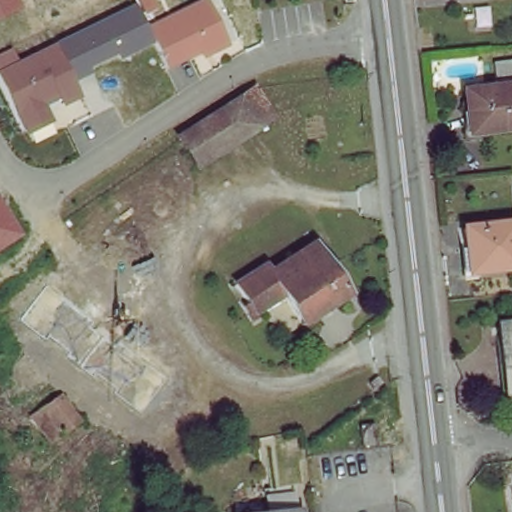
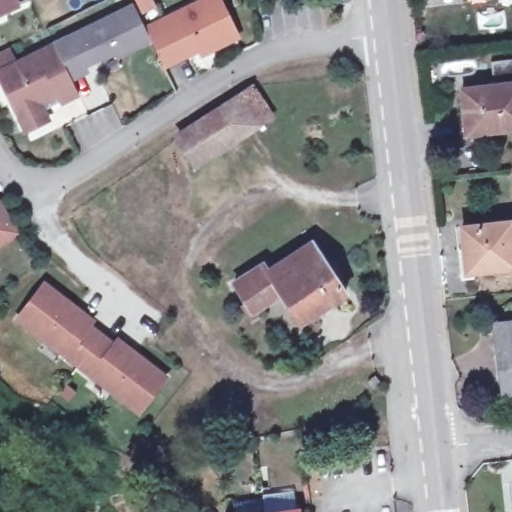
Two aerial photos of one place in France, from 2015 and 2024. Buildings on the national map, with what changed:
unchanged [(0,16),(0,0),(15,0),(19,8),(0,16)]
unchanged [(199,0),(208,0),(230,49),(201,63),(198,56),(165,70),(144,27),(199,0)]
unchanged [(135,3),(144,27),(153,46),(120,60),(117,55),(91,66),(94,73),(72,81),(54,42),(135,3)]
unchanged [(80,99),(63,107),(60,101),(46,108),(54,122),(25,135),(0,81),(0,68),(54,42),(80,99)]
unchanged [(253,82),(277,120),(196,171),(174,135),(253,82)]
unchanged [(465,138),(459,96),(512,92),(512,135),(465,138)]
unchanged [(0,249),(0,199),(23,235),(0,249)]
unchanged [(510,225),(512,252),(512,273),(462,276),(459,229),(510,225)]
unchanged [(340,292),(295,323),(274,286),(266,273),(271,270),(311,242),(340,292)]
unchanged [(263,258),(271,270),(266,273),(274,286),(241,308),(224,283),(263,258)]
new [(138,416),(106,391),(99,403),(80,386),(77,391),(67,383),(79,369),(15,318),(43,280),(97,320),(92,325),(114,341),(118,336),(169,376),(138,416)]
unchanged [(505,390),(501,326),(512,325),(512,390),(505,390)]
unchanged [(377,385),(370,371),(391,356),(393,373),(377,385)]
unchanged [(365,444),(349,445),(348,427),(364,426),(365,444)]

